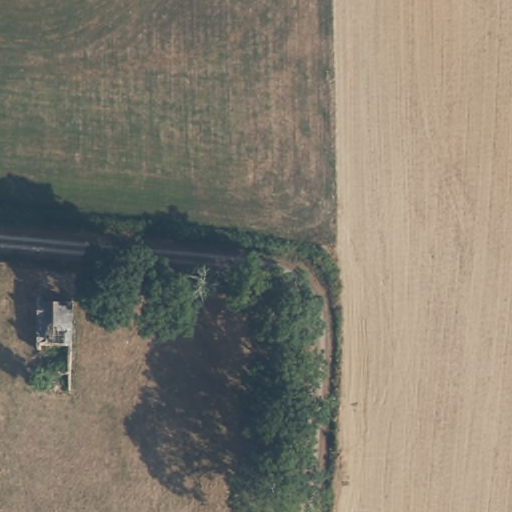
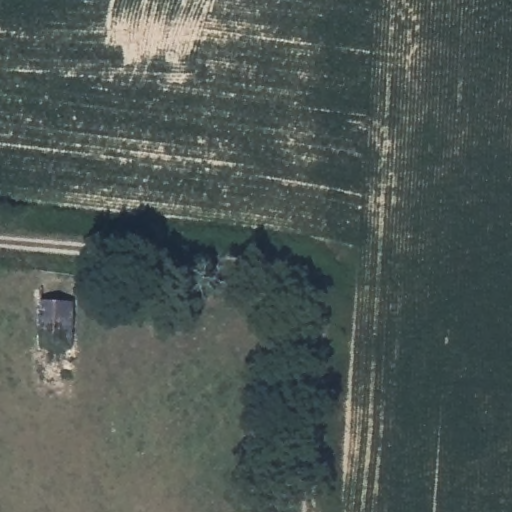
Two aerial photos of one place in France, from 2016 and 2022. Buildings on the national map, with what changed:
unchanged [(39,292),(78,299),(75,385),(32,379),(39,292)]

